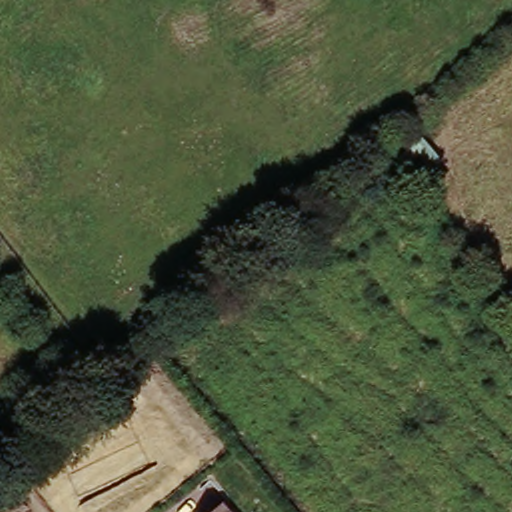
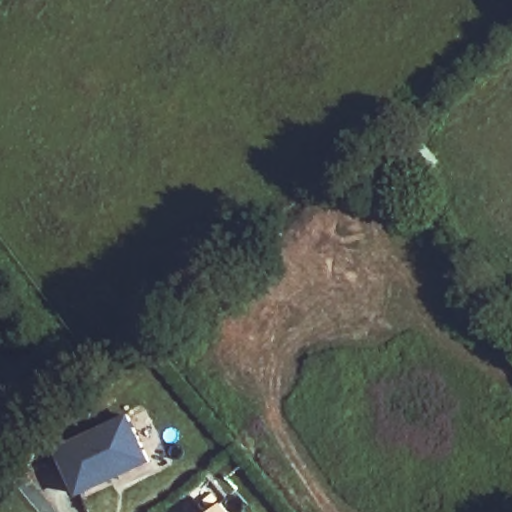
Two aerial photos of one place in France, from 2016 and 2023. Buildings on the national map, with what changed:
unchanged [(402,160),(427,140),(448,165),(421,182),(402,160)]
new [(127,416),(149,461),(76,494),(55,449),(127,416)]
unchanged [(221,503),(231,512),(210,512),(221,503)]

